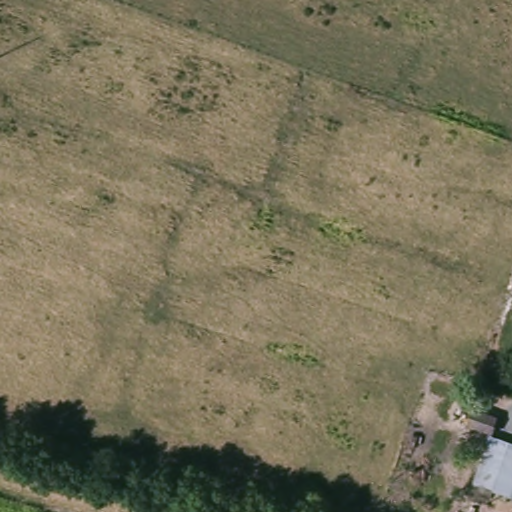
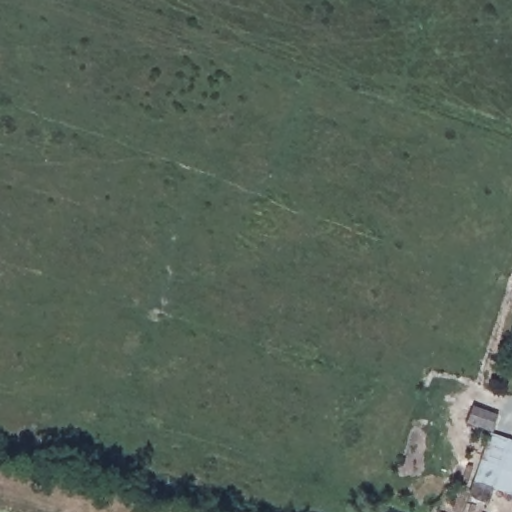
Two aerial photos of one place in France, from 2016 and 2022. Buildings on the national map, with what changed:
unchanged [(501,469),(485,464),(494,434),(512,440),(512,495),(496,490),(501,469)]

